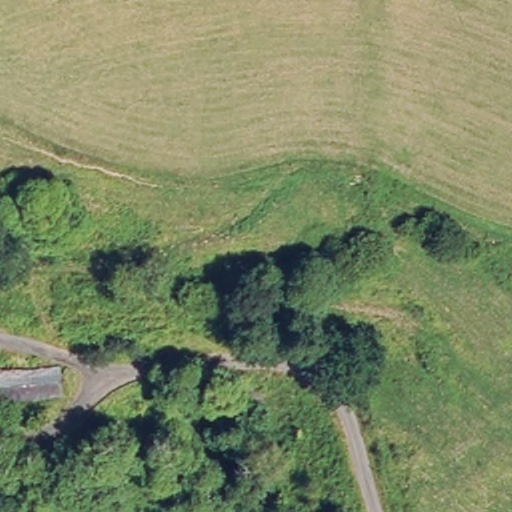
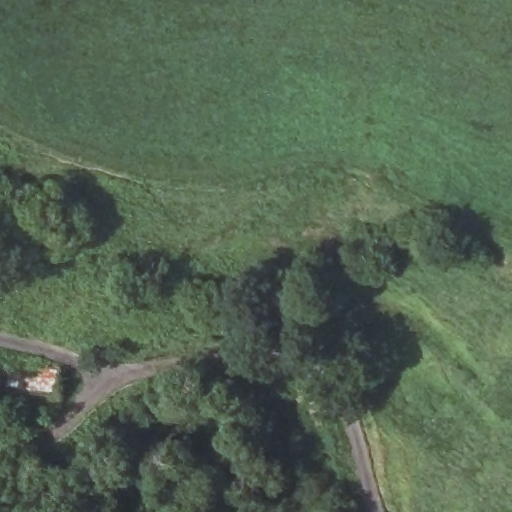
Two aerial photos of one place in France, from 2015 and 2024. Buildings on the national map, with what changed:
unchanged [(63,396),(0,397),(0,366),(61,366),(63,396)]

